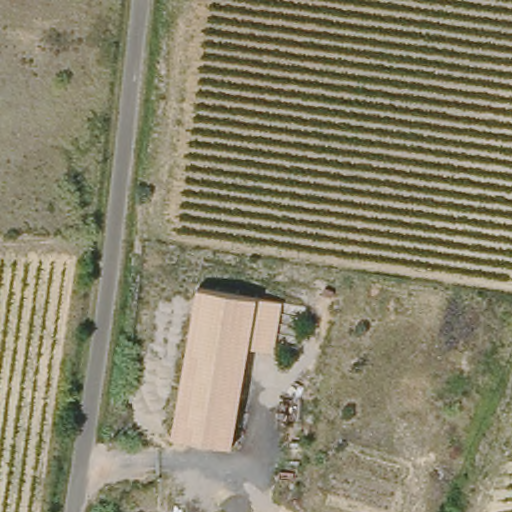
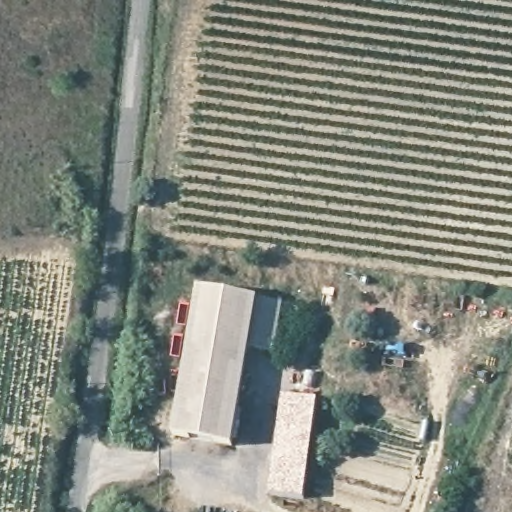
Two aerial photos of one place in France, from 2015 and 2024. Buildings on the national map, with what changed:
unchanged [(282,302),(276,351),(248,346),(232,449),(172,438),(197,290),(282,302)]
new [(283,397),(317,401),(305,498),(270,493),(283,397)]

